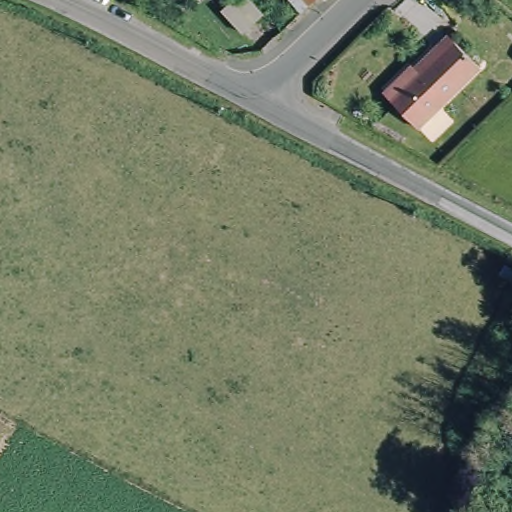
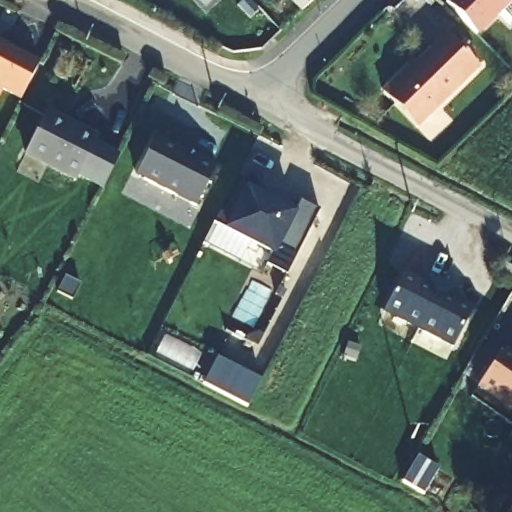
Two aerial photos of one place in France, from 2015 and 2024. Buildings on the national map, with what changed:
demolished [(320,0),(300,16),(286,0),(320,0)]
new [(292,0),(314,0),(301,10),(292,0)]
new [(512,0),(512,23),(510,24),(502,18),(480,35),(445,1),(447,0),(512,0)]
unchanged [(399,76),(402,80),(450,36),(480,68),(415,130),(380,94),(399,76)]
new [(7,46),(41,65),(23,99),(5,89),(0,97),(0,45),(7,48),(7,46)]
new [(48,110),(77,124),(100,135),(79,177),(28,151),(47,115),(48,110)]
new [(158,138),(198,158),(199,155),(220,166),(200,206),(139,176),(158,138)]
new [(297,213),(302,203),(318,212),(287,274),(269,265),(273,258),(248,245),(240,263),(204,244),(237,179),(258,189),(297,213)]
new [(405,273),(425,283),(430,274),(457,289),(453,298),(472,307),(452,348),(385,313),(405,273)]
new [(262,379),(248,406),(204,384),(218,356),(262,379)]
new [(512,362),(512,404),(492,390),(512,362)]

